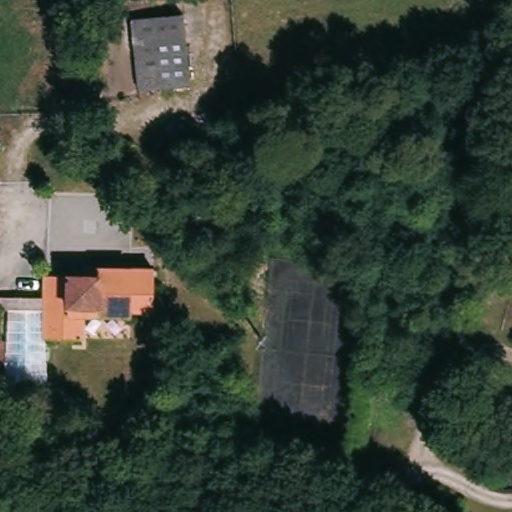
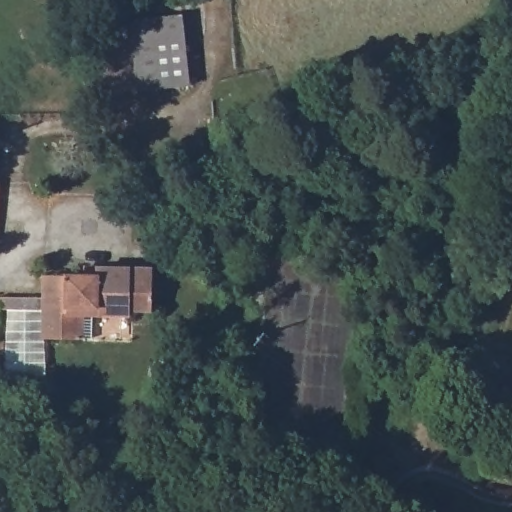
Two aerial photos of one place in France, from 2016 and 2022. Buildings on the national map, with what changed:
unchanged [(133,20),(157,19),(182,17),(187,87),(136,90),(135,56),(133,20)]
unchanged [(42,272),(92,273),(92,266),(133,266),(150,267),(149,293),(149,308),(126,308),(126,313),(78,310),(76,336),(40,336),(40,292),(42,272)]

